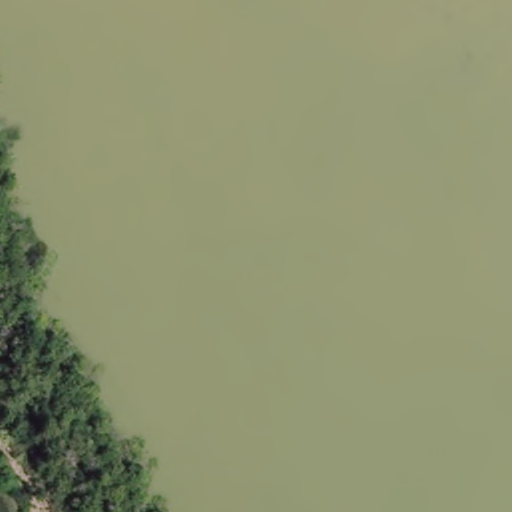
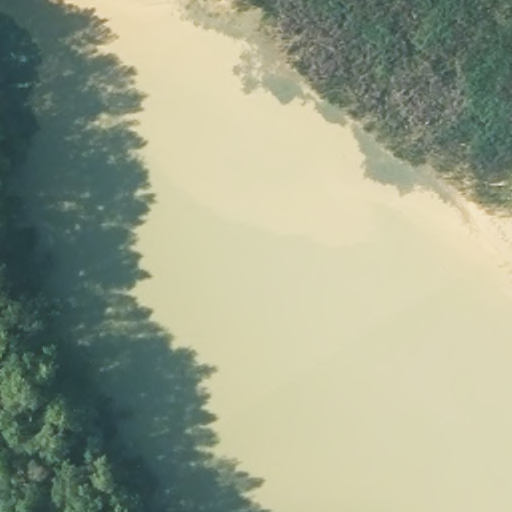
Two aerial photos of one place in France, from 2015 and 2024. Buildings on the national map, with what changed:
[]

